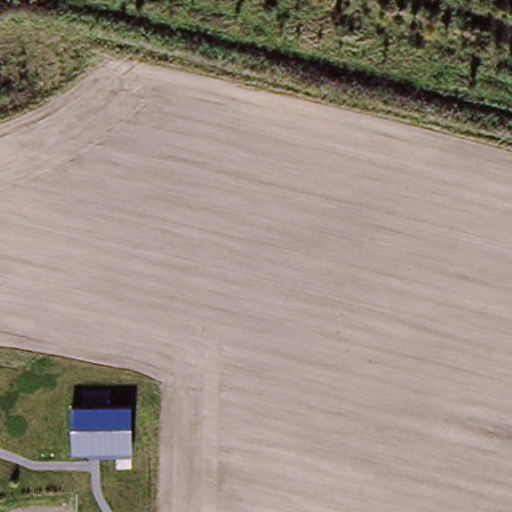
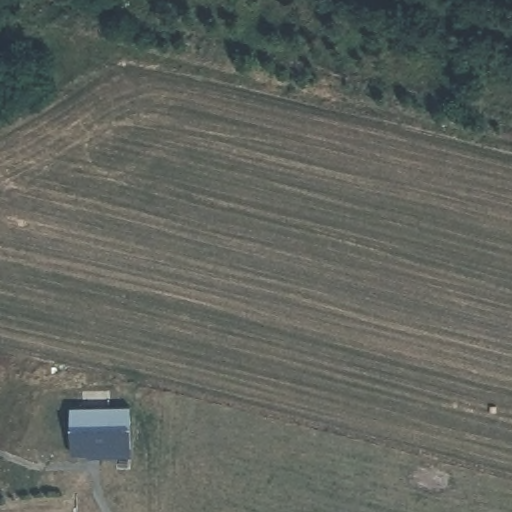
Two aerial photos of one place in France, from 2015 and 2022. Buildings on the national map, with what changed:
unchanged [(129,405),(130,461),(71,462),(70,405),(129,405)]

